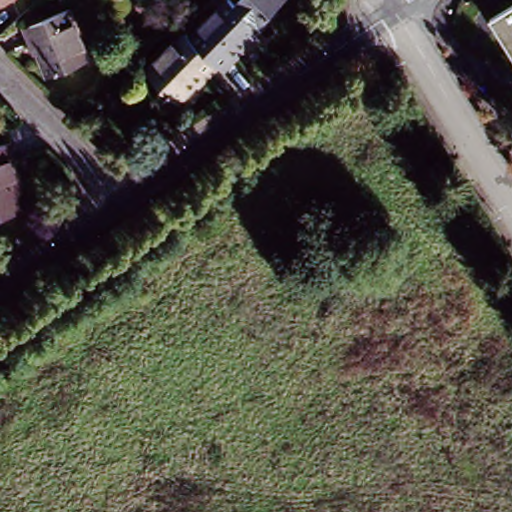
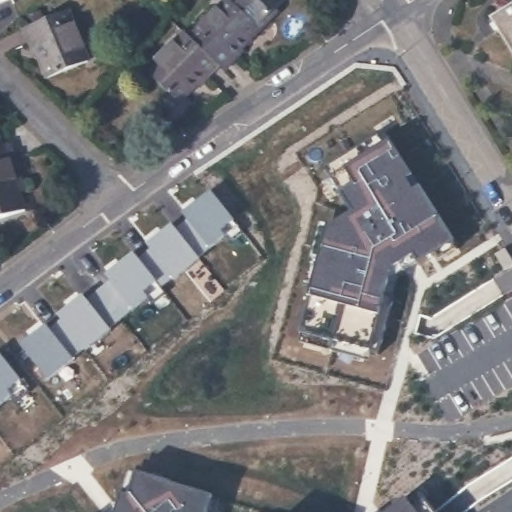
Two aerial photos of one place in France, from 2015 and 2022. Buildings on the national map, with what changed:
unchanged [(15,0),(0,16),(0,0),(15,0)]
unchanged [(229,0),(233,5),(256,27),(259,30),(232,57),(235,60),(221,73),(215,68),(187,40),(226,0),(229,0)]
unchanged [(284,0),(256,27),(233,5),(238,0),(284,0)]
unchanged [(512,2),(512,63),(485,19),(512,2)]
unchanged [(55,4),(94,43),(62,74),(36,46),(32,51),(20,38),(55,4)]
unchanged [(187,40),(215,68),(205,80),(201,76),(175,103),(145,74),(181,35),(187,40)]
new [(300,342),(300,332),(310,296),(328,223),(333,225),(352,213),(332,181),(346,172),(345,168),(390,140),(453,242),(419,262),(390,279),(385,294),(394,298),(372,361),(300,342)]
unchanged [(0,219),(0,143),(3,143),(8,158),(16,181),(11,182),(21,212),(0,219)]
new [(230,242),(225,237),(211,248),(212,250),(200,260),(175,280),(173,277),(160,287),(166,294),(152,304),(148,298),(48,379),(21,345),(47,326),(51,331),(63,321),(58,315),(84,295),(88,300),(111,281),(106,275),(135,253),(140,260),(152,250),(148,243),(173,223),(177,230),(189,219),(183,213),(212,191),(235,221),(242,232),(230,242)]
new [(16,403),(13,396),(0,407),(0,353),(21,381),(30,391),(16,403)]
new [(123,495),(133,497),(138,474),(214,498),(209,512),(119,512),(123,495)]
new [(406,499),(414,509),(425,500),(434,512),(390,512),(406,499)]

